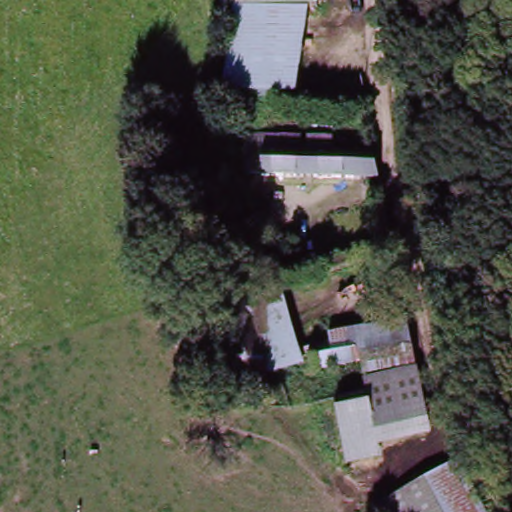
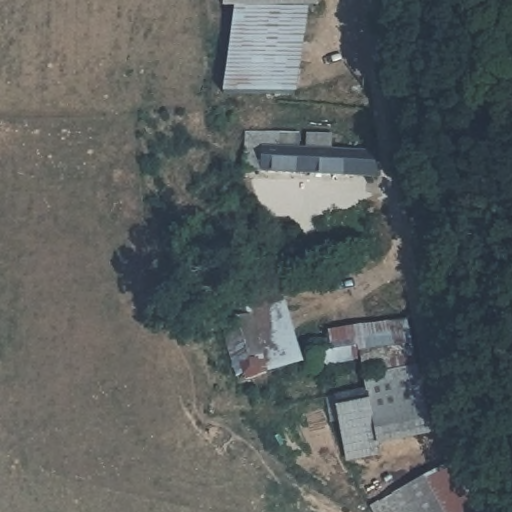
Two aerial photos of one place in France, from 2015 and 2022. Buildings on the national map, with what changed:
unchanged [(227,0),(322,0),(322,12),(305,12),(233,9),(227,9),(227,0)]
unchanged [(305,12),(293,99),(220,97),(233,9),(305,12)]
unchanged [(278,150),(346,151),(365,151),(362,181),(278,180),(278,150)]
unchanged [(251,377),(230,295),(281,282),(304,366),(251,377)]
unchanged [(377,452),(378,461),(344,466),(333,396),(365,392),(364,363),(310,370),(307,347),(329,344),(329,332),(376,328),(418,324),(421,353),(424,377),(428,406),(436,440),(377,452)]
unchanged [(363,508),(439,469),(466,455),(494,512),(365,512),(363,508)]

